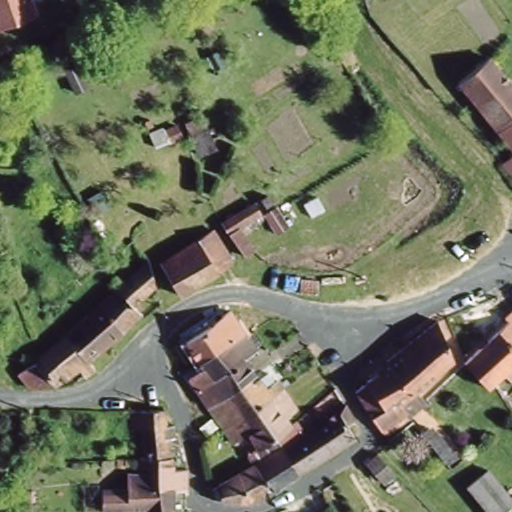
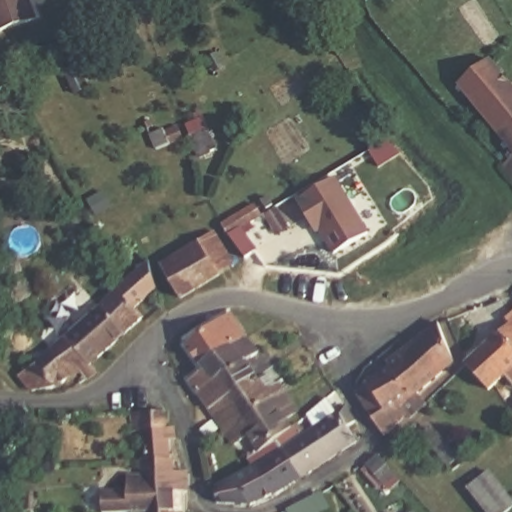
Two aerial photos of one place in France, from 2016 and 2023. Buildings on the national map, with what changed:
unchanged [(1,29),(0,26),(0,0),(32,0),(37,15),(1,29)]
unchanged [(499,160),(498,161),(497,160),(510,150),(453,79),(486,54),(494,46),(503,56),(492,64),(512,89),(512,176),(499,160)]
new [(384,137),(397,156),(384,165),(371,146),(384,137)]
new [(335,177),(368,233),(334,253),(319,229),(315,232),(296,200),(335,177)]
unchanged [(231,235),(223,223),(255,204),(264,216),(251,224),(243,229),(255,251),(244,257),(231,235)]
unchanged [(288,229),(276,237),(265,218),(275,211),(288,229)]
unchanged [(213,227),(233,259),(179,292),(159,260),(213,227)]
unchanged [(94,302),(143,257),(151,284),(131,303),(136,311),(118,328),(96,304),(94,302)]
unchanged [(118,328),(84,357),(64,333),(96,304),(118,328)]
unchanged [(196,363),(182,344),(226,313),(240,336),(196,363)]
unchanged [(488,384),(465,360),(512,318),(512,376),(504,368),(492,380),(488,384)]
unchanged [(402,408),(403,410),(378,429),(368,414),(351,386),(364,377),(387,363),(384,360),(376,349),(396,334),(404,344),(434,319),(449,360),(408,394),(412,399),(402,408)]
unchanged [(64,333),(84,357),(90,366),(80,373),(74,364),(48,383),(46,380),(24,387),(13,371),(30,359),(64,333)]
unchanged [(193,392),(186,380),(201,370),(196,363),(240,336),(251,353),(241,359),(193,392)]
unchanged [(241,359),(253,376),(205,409),(193,392),(241,359)]
unchanged [(253,376),(261,389),(275,381),(280,389),(219,430),(205,409),(253,376)]
unchanged [(207,491),(249,465),(243,455),(254,448),(244,433),(228,444),(219,430),(280,389),(293,409),(281,417),(288,427),(271,438),(278,448),(336,413),(336,412),(341,407),(350,420),(343,425),(352,440),(294,475),(246,504),(211,502),(207,491)]
unchanged [(138,423),(161,422),(171,422),(171,434),(164,434),(165,454),(168,454),(169,465),(142,465),(136,465),(136,453),(139,453),(139,451),(138,423)]
unchanged [(433,425),(458,456),(448,465),(422,434),(433,425)]
unchanged [(378,451),(396,472),(386,481),(368,459),(378,451)]
unchanged [(169,465),(169,468),(181,467),(182,486),(168,486),(168,505),(130,505),(95,506),(95,489),(123,488),(123,469),(142,469),(142,465),(169,465)]
unchanged [(491,471),(512,497),(512,509),(508,512),(490,512),(471,487),(491,471)]
unchanged [(167,512),(130,512),(130,505),(168,505),(167,512)]

